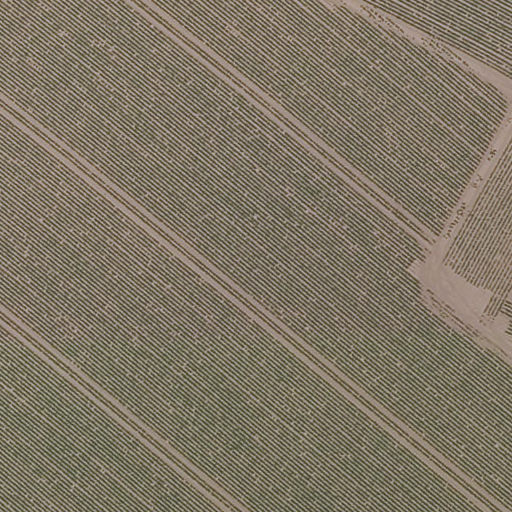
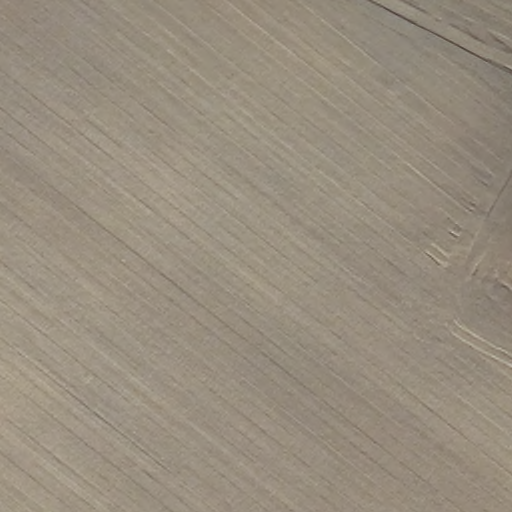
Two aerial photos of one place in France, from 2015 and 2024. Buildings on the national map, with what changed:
[]

